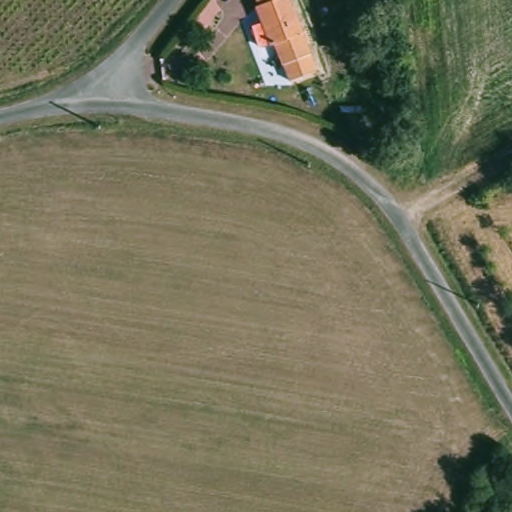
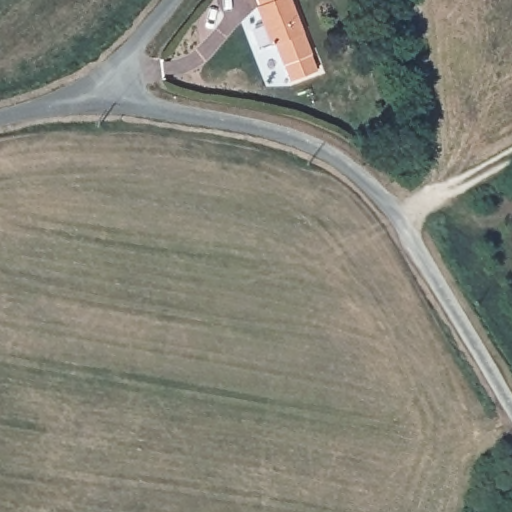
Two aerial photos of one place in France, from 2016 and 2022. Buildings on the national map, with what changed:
unchanged [(300,74),(286,78),(274,43),(273,40),(268,41),(265,43),(260,41),(255,25),(257,20),(266,17),(261,1),(264,1),(264,0),(295,0),(316,68),(300,74)]

